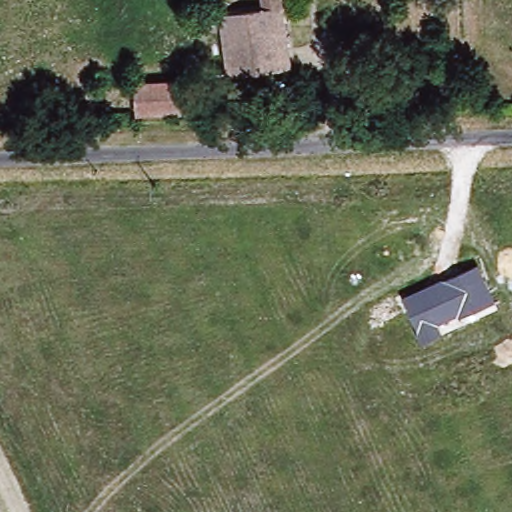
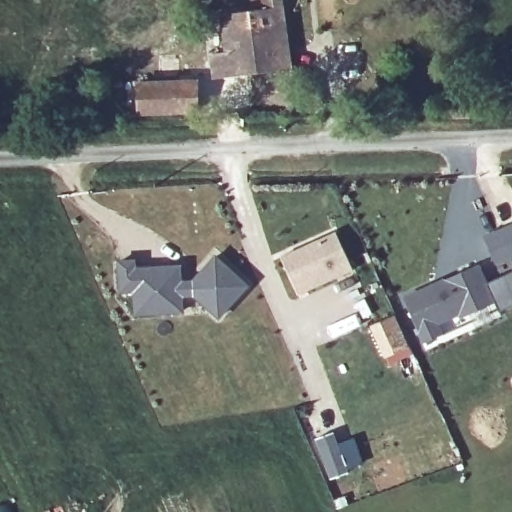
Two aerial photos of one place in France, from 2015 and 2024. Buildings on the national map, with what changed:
unchanged [(227,79),(224,14),(258,10),(258,0),(285,0),(288,76),(227,79)]
unchanged [(194,109),(139,112),(139,88),(193,86),(194,109)]
new [(512,223),(512,254),(508,255),(492,263),(480,238),(496,230),(512,223)]
new [(330,233),(347,269),(293,295),(276,259),(330,233)]
new [(138,259),(138,267),(180,264),(181,280),(191,279),(214,253),(248,282),(218,318),(193,295),(183,296),(183,310),(133,314),(131,294),(118,294),(116,261),(138,259)]
unchanged [(479,265),(495,303),(460,319),(458,315),(439,324),(443,334),(422,343),(403,298),(479,265)]

